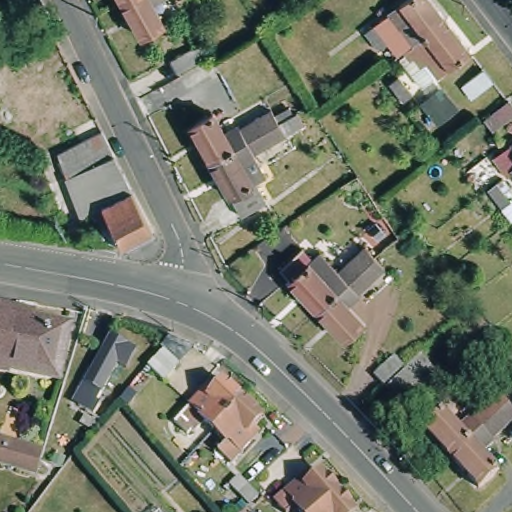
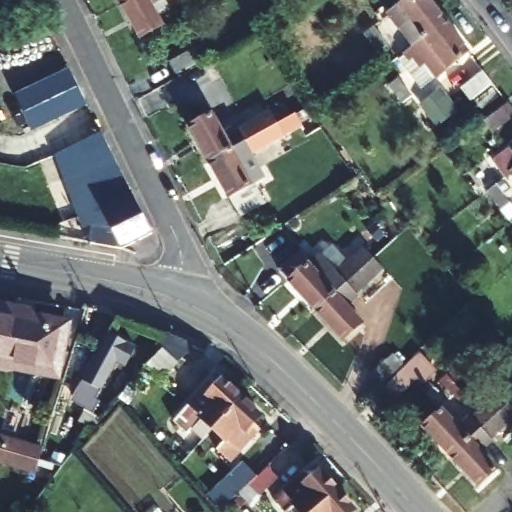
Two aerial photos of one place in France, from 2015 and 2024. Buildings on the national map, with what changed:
unchanged [(160,22),(139,34),(119,0),(153,0),(149,2),(160,22)]
unchanged [(411,16),(401,2),(403,0),(452,0),(454,2),(423,28),(413,15),(411,16)]
unchanged [(417,32),(423,28),(454,2),(477,31),(461,45),(445,58),(432,67),(408,39),(417,32)]
unchanged [(392,39),(377,21),(385,14),(400,32),(392,39)]
unchanged [(186,78),(179,66),(203,53),(209,64),(186,78)]
unchanged [(422,77),(408,59),(416,53),(430,70),(422,77)]
unchanged [(194,92),(187,79),(211,66),(218,79),(194,92)]
new [(70,69),(88,106),(34,131),(16,94),(70,69)]
unchanged [(301,122),(251,150),(263,173),(250,180),(254,186),(256,185),(264,199),(238,213),(207,157),(188,123),(210,110),(221,129),(235,121),(237,125),(240,123),(268,108),(274,120),(294,109),(301,122)]
unchanged [(495,123),(512,109),(512,126),(503,133),(495,123)]
unchanged [(86,228),(48,157),(103,129),(156,229),(128,246),(95,238),(94,223),(86,228)]
unchanged [(512,154),(512,168),(505,159),(512,154)]
unchanged [(504,190),(512,200),(512,217),(495,196),(504,190)]
unchanged [(349,309),(364,324),(347,341),(319,312),(282,273),(301,254),(312,266),(323,256),(340,274),(342,272),(366,248),(376,259),(385,269),(361,293),(363,295),(349,309)]
unchanged [(7,363),(5,363),(0,362),(0,306),(16,309),(15,312),(7,363)]
unchanged [(63,320),(59,346),(55,371),(8,362),(7,363),(15,312),(63,320)]
unchanged [(394,346),(405,361),(443,326),(463,350),(406,402),(374,367),(394,346)]
unchanged [(186,362),(171,379),(156,364),(171,348),(186,362)]
unchanged [(80,412),(90,390),(82,386),(101,352),(118,361),(94,405),(99,407),(93,419),(80,412)]
unchanged [(216,425),(206,415),(196,426),(194,423),(189,428),(176,416),(207,383),(214,390),(227,377),(245,394),(216,425)]
unchanged [(483,447),(499,465),(482,482),(453,452),(426,424),(444,407),(459,422),(470,413),(472,415),(475,412),(499,390),(509,400),(512,403),(512,415),(494,432),(492,434),(494,436),(483,447)]
unchanged [(264,413),(251,427),(257,433),(243,447),(244,447),(233,458),(220,446),(229,437),(216,425),(245,394),(264,413)]
unchanged [(0,457),(0,445),(44,458),(41,468),(0,457)]
unchanged [(313,512),(305,512),(298,503),(289,511),(277,498),(288,488),(303,475),(309,482),(324,469),(341,488),(313,512)]
unchanged [(250,499),(241,489),(232,479),(241,471),(250,481),(259,491),(250,499)]
unchanged [(358,508),(353,512),(313,512),(341,488),(358,508)]

